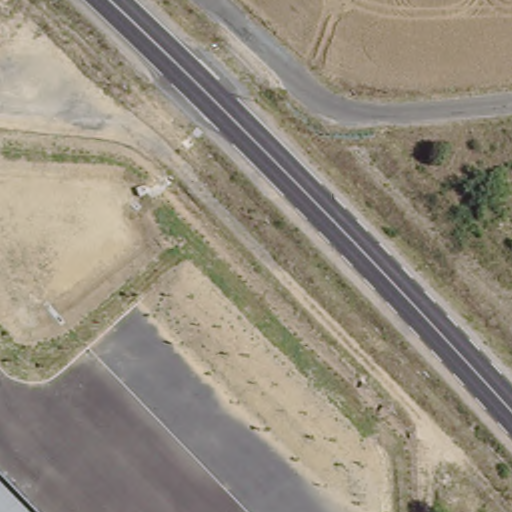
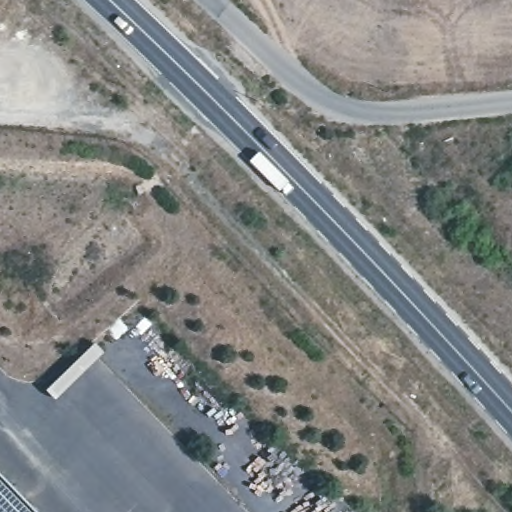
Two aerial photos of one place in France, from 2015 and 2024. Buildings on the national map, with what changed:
unchanged [(0,471),(40,512),(0,512),(0,471)]

